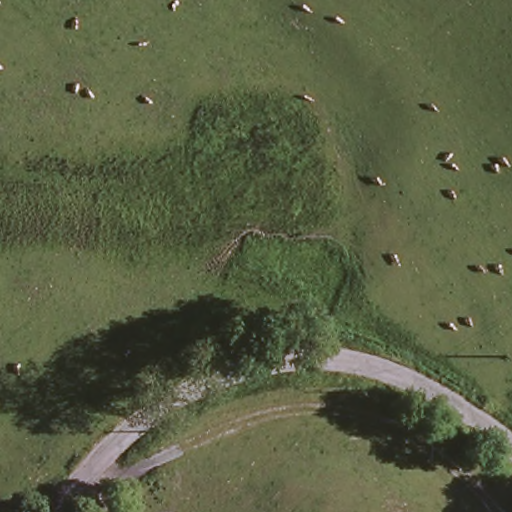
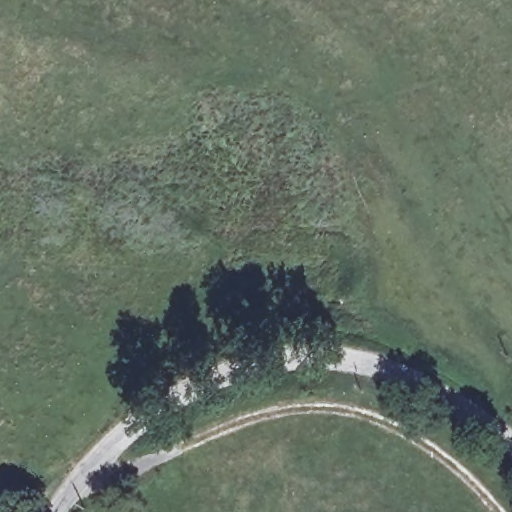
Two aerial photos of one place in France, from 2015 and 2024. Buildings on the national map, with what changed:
[]

